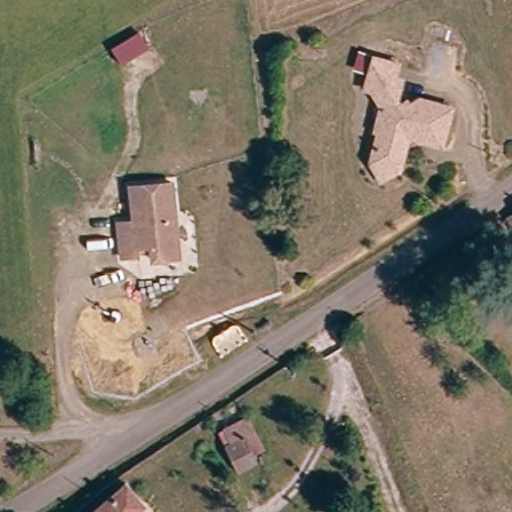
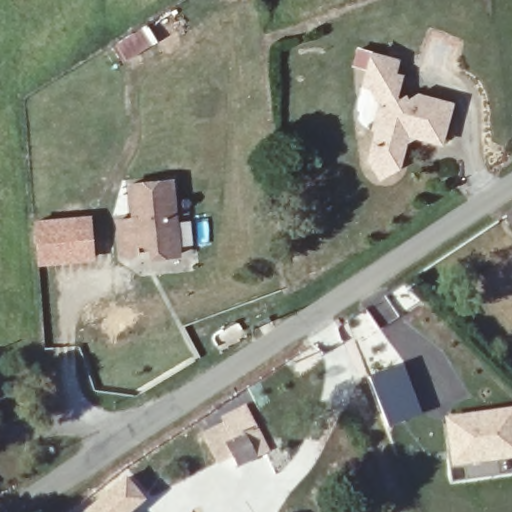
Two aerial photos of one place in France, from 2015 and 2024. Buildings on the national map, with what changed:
unchanged [(133,47),(106,62),(98,47),(125,32),(133,47)]
unchanged [(375,141),(387,130),(364,100),(355,99),(359,84),(364,70),(401,82),(397,93),(394,101),(397,108),(402,111),(410,104),(411,109),(416,109),(423,103),(454,110),(442,146),(414,141),(408,145),(400,176),(368,168),(375,141)]
unchanged [(185,258),(158,260),(157,246),(144,247),(144,256),(128,257),(127,221),(141,220),(140,186),(181,183),(185,258)]
unchanged [(497,218),(512,208),(512,240),(510,241),(497,218)]
new [(37,220),(92,216),(94,260),(40,264),(37,220)]
new [(422,414),(390,428),(367,376),(401,361),(422,414)]
new [(512,460),(451,467),(445,417),(512,406),(512,460)]
unchanged [(228,410),(255,449),(244,456),(247,461),(240,467),(232,473),(210,442),(216,438),(207,424),(223,414),(228,410)]
unchanged [(142,499),(126,512),(88,512),(125,481),(142,499)]

